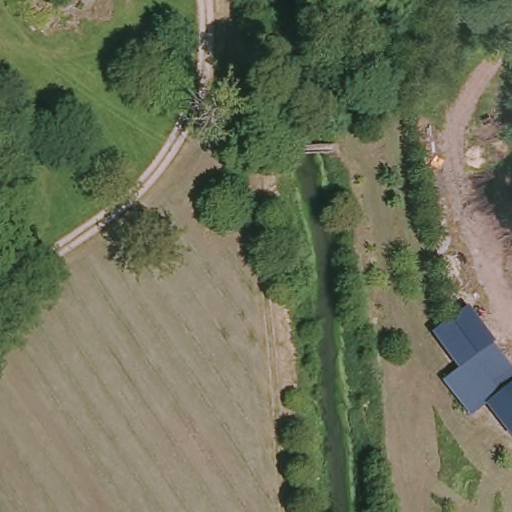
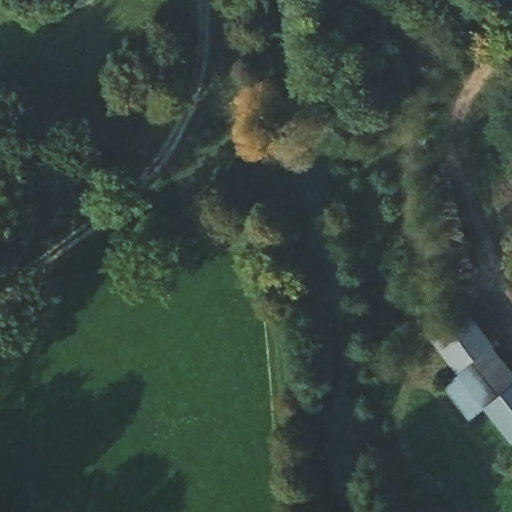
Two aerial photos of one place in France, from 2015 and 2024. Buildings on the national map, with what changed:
unchanged [(459,371),(429,334),(464,310),(493,348),(459,371)]
unchanged [(443,385),(470,363),(493,348),(512,371),(512,389),(499,399),(470,420),(443,385)]
unchanged [(488,406),(512,389),(512,436),(488,406)]

